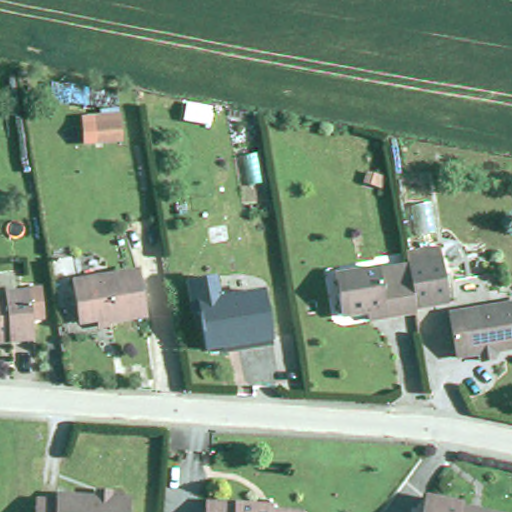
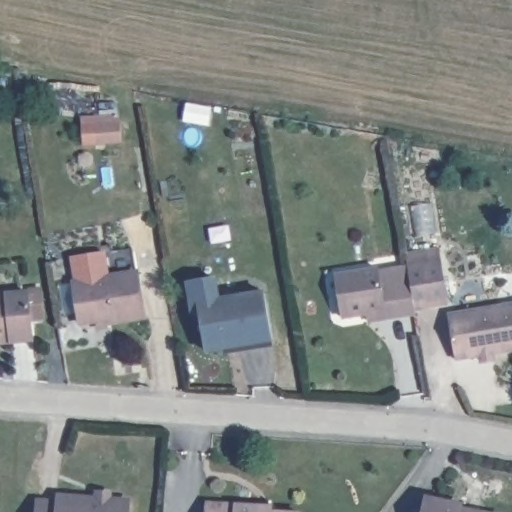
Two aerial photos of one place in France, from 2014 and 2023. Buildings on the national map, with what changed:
unchanged [(90,122),(114,120),(116,139),(91,141),(90,122)]
unchanged [(402,262),(434,258),(439,299),(409,303),(402,262)]
unchanged [(359,310),(341,313),(333,314),(326,268),(336,266),(371,261),(371,267),(402,262),(409,303),(409,309),(381,314),(360,317),(359,310)]
unchanged [(141,319),(106,323),(105,320),(78,323),(71,282),(132,274),(141,319)]
unchanged [(208,276),(211,298),(257,290),(265,338),(231,343),(231,337),(221,339),(222,344),(198,349),(192,310),(186,312),(181,280),(208,276)]
unchanged [(0,342),(0,295),(28,291),(34,337),(0,342)]
unchanged [(476,357),(474,349),(448,354),(441,314),(512,301),(512,343),(484,348),(485,355),(476,357)]
unchanged [(422,497),(457,503),(456,508),(477,512),(419,512),(422,497)]
unchanged [(119,512),(29,512),(30,502),(50,503),(50,498),(119,502),(119,512)]
unchanged [(248,512),(200,512),(200,510),(248,512)]

